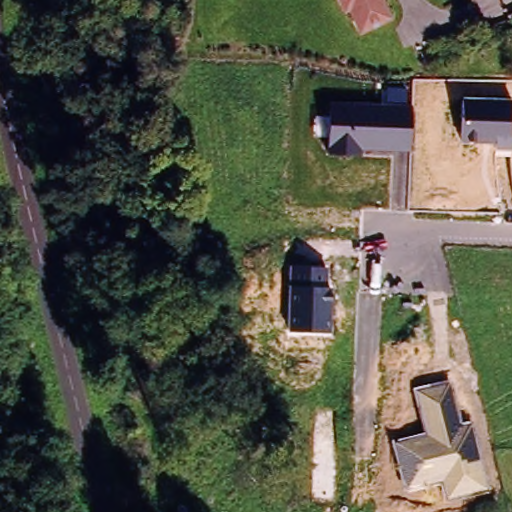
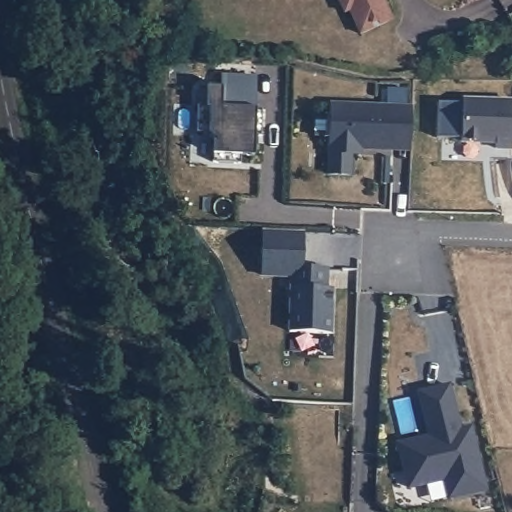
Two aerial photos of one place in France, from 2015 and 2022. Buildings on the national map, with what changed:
unchanged [(349,17),(344,19),(334,0),(384,0),(381,1),(391,25),(360,39),(349,17)]
new [(200,109),(210,110),(211,90),(225,90),(226,79),(260,80),(259,111),(266,111),(265,139),(259,138),(259,159),(245,159),(244,166),(216,165),(217,142),(212,136),(199,136),(200,109)]
unchanged [(330,154),(332,101),(384,103),(384,88),(407,90),(407,104),(411,105),(410,151),(362,150),(362,156),(330,154)]
unchanged [(497,150),(496,144),(463,143),(462,98),(512,100),(512,150),(497,150)]
new [(290,266),(290,276),(262,277),(261,229),(304,232),(302,267),(290,266)]
unchanged [(289,332),(290,266),(326,268),(326,288),(331,289),(331,332),(289,332)]
unchanged [(0,362),(16,357),(21,389),(0,393),(0,362)]
unchanged [(392,442),(426,435),(415,390),(451,382),(462,426),(472,424),(487,491),(446,501),(441,484),(407,492),(392,442)]

